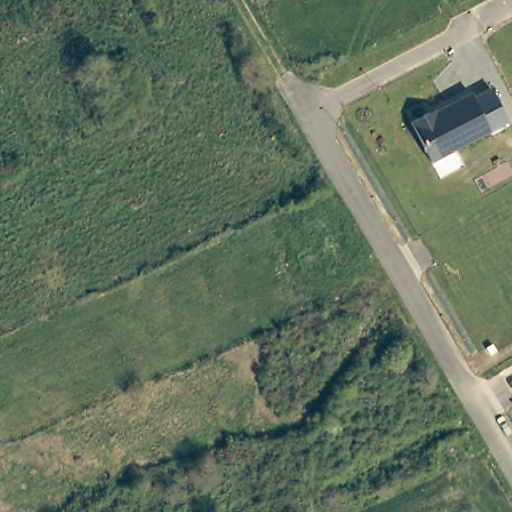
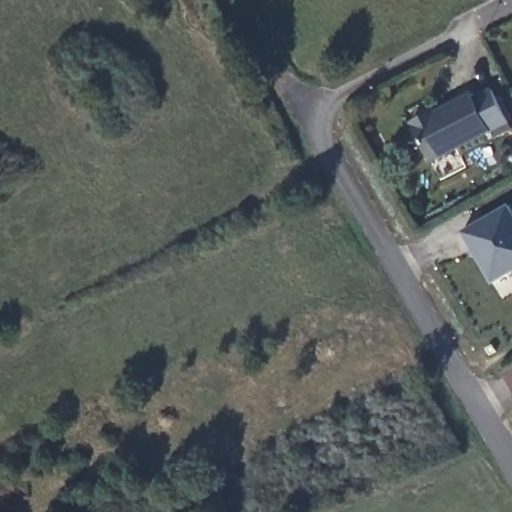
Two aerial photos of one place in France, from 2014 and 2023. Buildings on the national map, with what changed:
unchanged [(471,92),(475,98),(491,89),(507,121),(432,161),(412,123),(471,92)]
new [(512,209),(512,273),(500,281),(481,247),(475,251),(464,232),(510,206),(512,209)]

